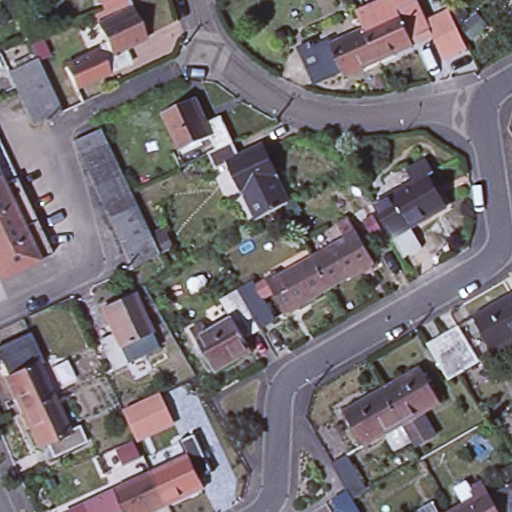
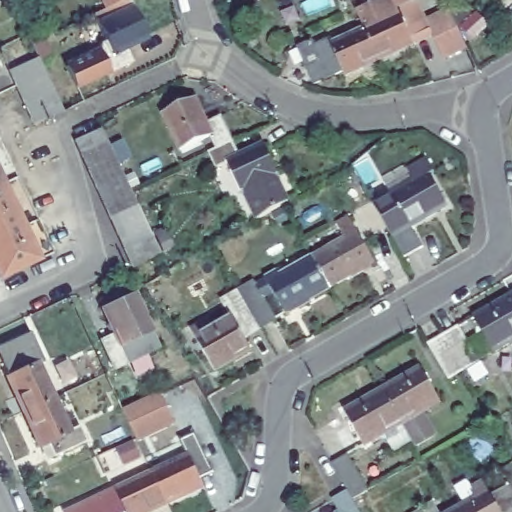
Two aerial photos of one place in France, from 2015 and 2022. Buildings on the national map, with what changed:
unchanged [(104,0),(113,0),(106,4),(104,0)]
unchanged [(326,29),(331,37),(333,42),(366,26),(365,23),(360,14),(390,0),(413,0),(421,18),(451,5),(461,27),(470,46),(441,59),(427,30),(413,36),(415,41),(380,57),(348,73),(345,67),(331,75),(317,81),(309,63),(298,41),(326,29)]
unchanged [(136,10),(150,41),(130,50),(136,65),(113,76),(105,61),(115,56),(100,25),(136,10)]
unchanged [(29,109),(19,86),(13,72),(42,57),(49,72),(60,94),(67,109),(49,119),(36,125),(29,109)]
unchanged [(163,111),(197,97),(209,122),(224,116),(235,140),(225,145),(221,147),(219,147),(214,137),(181,151),(163,111)]
unchanged [(119,232),(111,216),(104,202),(97,187),(89,171),(81,154),(74,141),(102,127),(109,142),(117,159),(125,175),(132,190),(139,204),(146,220),(154,236),(162,252),(140,264),(135,267),(126,248),(119,232)]
unchanged [(241,152),(267,140),(282,173),(279,175),(273,177),(245,191),(244,192),(231,162),(216,169),(208,152),(219,147),(221,147),(225,145),(235,140),(241,152)]
unchanged [(0,186),(0,141),(17,178),(0,186)]
unchanged [(375,202),(416,180),(406,163),(425,152),(436,171),(432,172),(450,205),(427,219),(426,216),(412,224),(413,226),(395,236),(375,202)]
unchanged [(279,175),(290,201),(267,214),(258,219),(245,191),(273,177),(279,175)]
unchanged [(0,279),(0,186),(17,178),(50,249),(53,256),(0,279)]
unchanged [(347,241),(338,225),(353,218),(378,265),(362,274),(364,277),(351,283),(350,280),(331,291),(313,260),(347,241)]
unchanged [(269,285),(313,260),(331,291),(312,302),(313,306),(301,312),(299,310),(287,316),(269,285)]
unchanged [(240,294),(254,286),(276,323),(261,332),(246,340),(253,352),(233,363),(235,366),(214,377),(191,333),(203,327),(208,334),(233,322),(222,303),(240,294)]
unchanged [(486,313),(509,301),(508,298),(512,296),(512,342),(505,346),(486,313)]
unchanged [(133,367),(120,374),(105,347),(118,340),(105,314),(138,298),(156,335),(164,352),(133,367)]
unchanged [(439,338),(454,329),(469,321),(489,356),(475,365),(459,373),(439,338)]
unchanged [(60,400),(44,407),(24,416),(9,382),(12,381),(6,367),(0,355),(0,350),(36,335),(43,350),(50,364),(44,367),(60,400)]
unchanged [(422,450),(419,443),(399,455),(389,437),(370,447),(350,414),(374,401),(373,397),(387,388),(401,380),(403,383),(428,369),(447,403),(431,413),(445,438),(422,450)]
unchanged [(164,396),(177,426),(139,443),(138,440),(125,413),(164,396)]
unchanged [(40,451),(24,416),(44,407),(60,400),(75,431),(83,427),(91,445),(57,460),(51,447),(40,451)]
unchanged [(191,451),(185,437),(202,429),(221,467),(205,475),(208,481),(175,497),(160,466),(191,451)]
unchanged [(339,498),(353,490),(337,462),(351,454),(372,492),(359,499),(363,507),(366,512),(347,512),(339,498)]
unchanged [(175,497),(144,512),(78,512),(76,507),(160,466),(175,497)]
unchanged [(512,477),(512,480),(511,478),(512,477)]
unchanged [(480,500),(474,491),(487,482),(494,493),(512,483),(512,512),(459,512),(480,500)]

